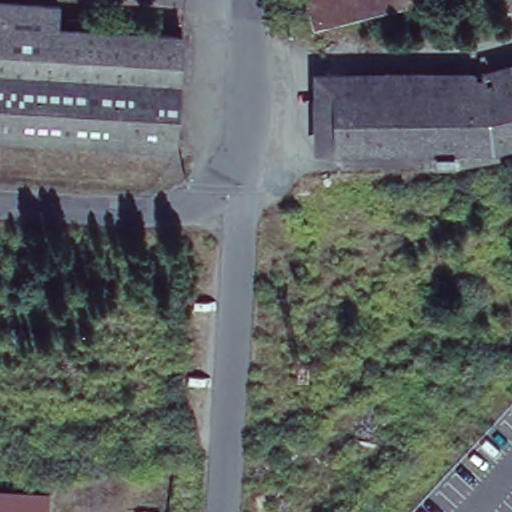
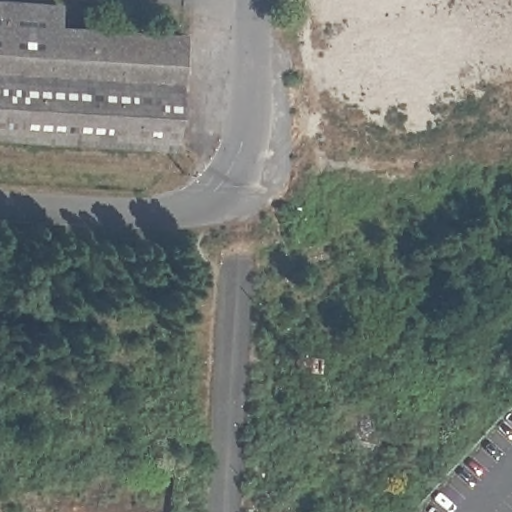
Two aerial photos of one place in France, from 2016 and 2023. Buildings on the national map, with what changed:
demolished [(300,23),(293,0),(394,0),(300,23)]
unchanged [(55,31),(65,31),(65,21),(89,22),(88,33),(182,39),(175,154),(0,143),(0,4),(56,7),(55,31)]
demolished [(480,90),(512,82),(512,144),(492,149),(492,154),(448,165),(430,166),(428,148),(332,148),(332,90),(480,90)]

